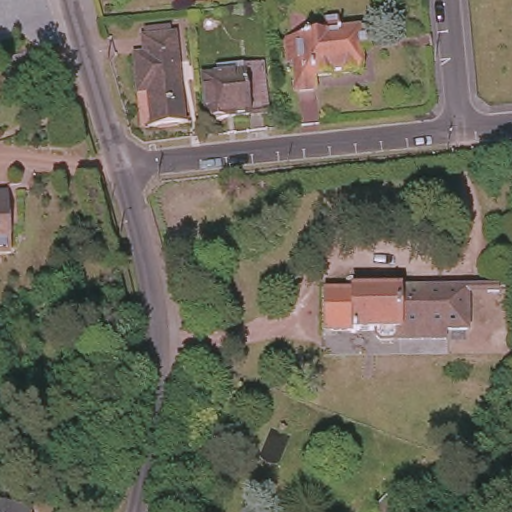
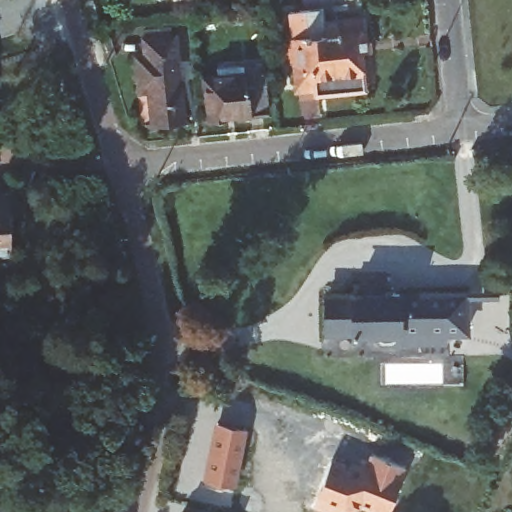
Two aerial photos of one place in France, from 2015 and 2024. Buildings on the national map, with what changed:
unchanged [(371,54),(366,54),(367,73),(320,78),(320,90),(302,91),(300,64),(291,65),(288,41),(328,37),(327,23),(344,20),(345,35),(369,31),(371,54)]
unchanged [(177,124),(145,127),(141,91),(131,93),(128,56),(137,56),(136,40),(167,36),(177,124)]
unchanged [(266,109),(206,115),(203,73),(217,71),(216,64),(240,61),(241,69),(255,68),(255,60),(261,60),(266,109)]
unchanged [(8,187),(9,244),(0,244),(0,187),(8,187)]
unchanged [(500,284),(500,304),(473,305),(472,335),(320,332),(321,283),(500,284)]
new [(215,422),(248,429),(235,488),(203,482),(215,422)]
new [(325,475),(360,485),(366,465),(370,466),(371,458),(403,468),(390,512),(340,512),(316,505),(325,475)]
unchanged [(7,512),(0,512),(0,510),(7,512)]

